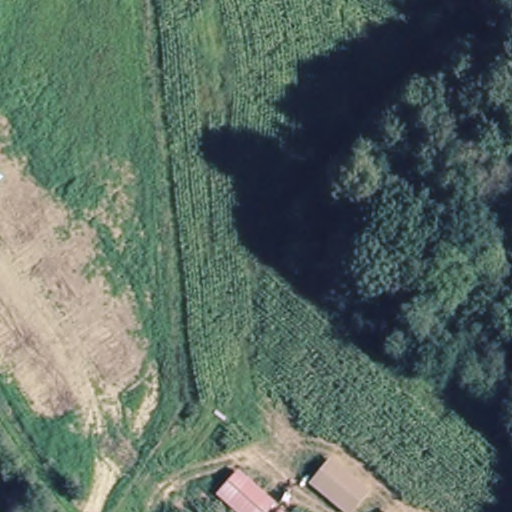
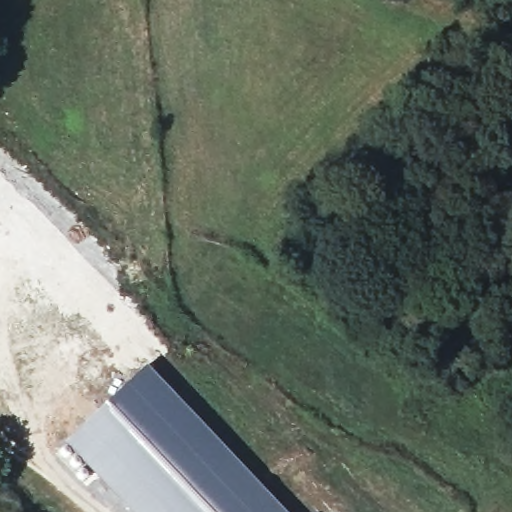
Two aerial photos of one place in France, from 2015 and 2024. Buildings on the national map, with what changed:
new [(148,364),(288,512),(130,512),(66,442),(99,409),(148,364)]
demolished [(300,459),(258,428),(281,400),(320,432),(300,459)]
demolished [(361,506),(321,474),(342,447),(381,480),(361,506)]
demolished [(233,484),(268,512),(213,512),(212,511),(233,484)]
demolished [(416,512),(389,512),(402,500),(416,512)]

